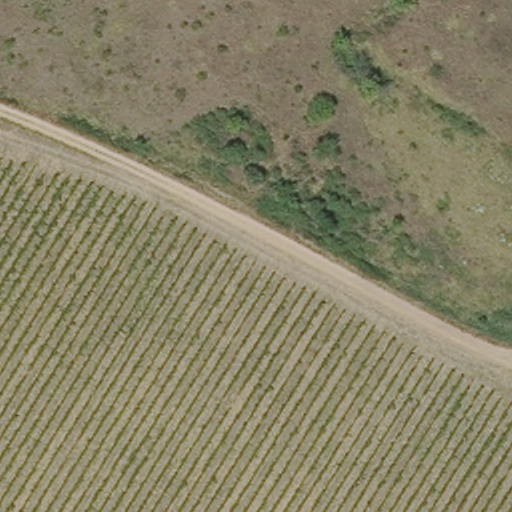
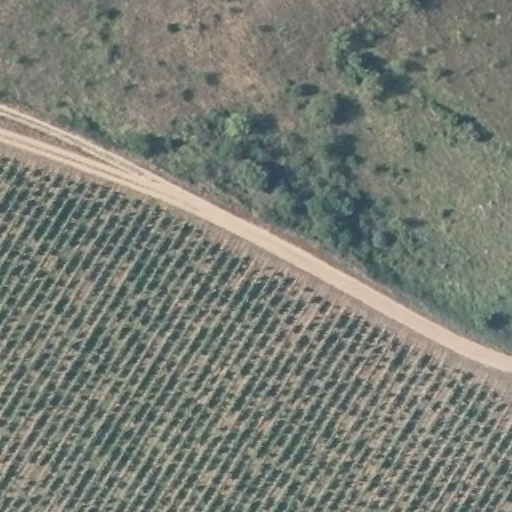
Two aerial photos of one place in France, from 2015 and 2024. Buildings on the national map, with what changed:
[]

